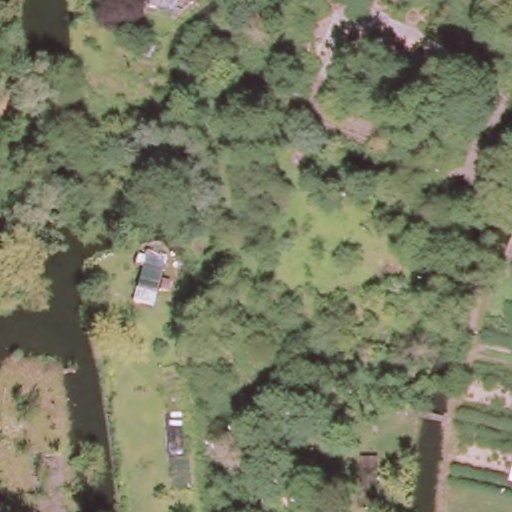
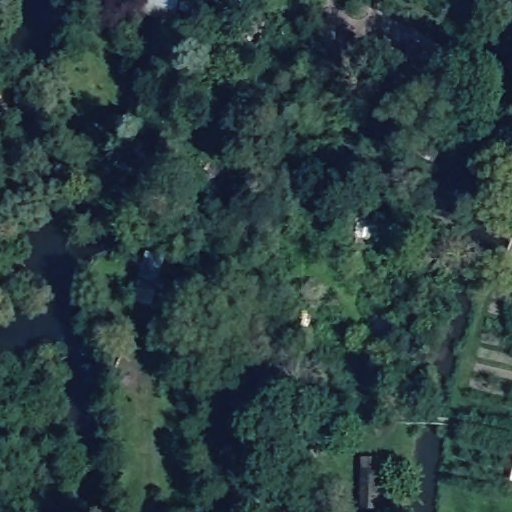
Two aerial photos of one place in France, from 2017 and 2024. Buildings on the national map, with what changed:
unchanged [(154,0),(191,0),(188,10),(154,0)]
unchanged [(415,134),(442,146),(435,162),(407,150),(415,134)]
unchanged [(106,297),(89,298),(86,268),(104,267),(106,297)]
unchanged [(377,510),(361,508),(362,469),(378,471),(377,510)]

